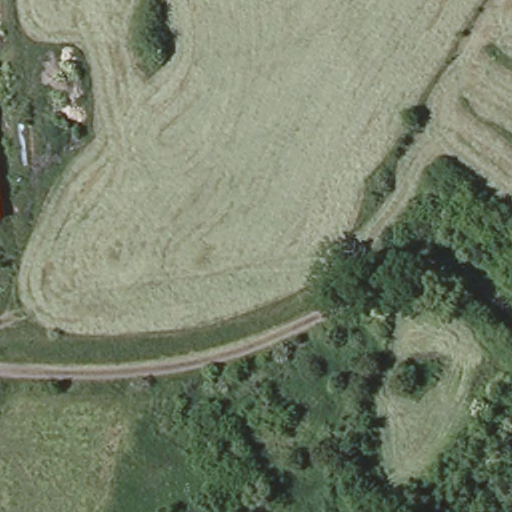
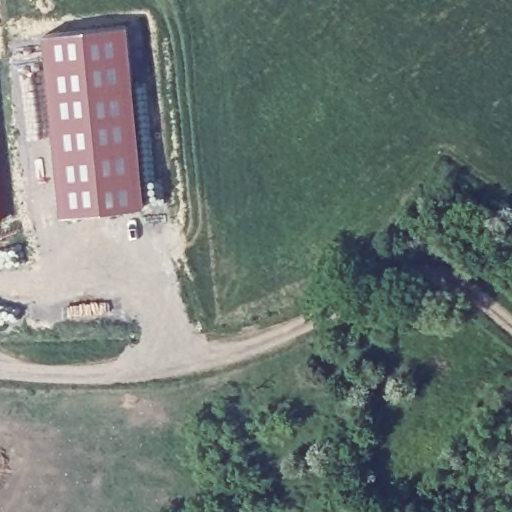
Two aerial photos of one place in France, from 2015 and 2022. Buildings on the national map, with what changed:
new [(126,31),(144,208),(61,218),(42,39),(126,31)]

